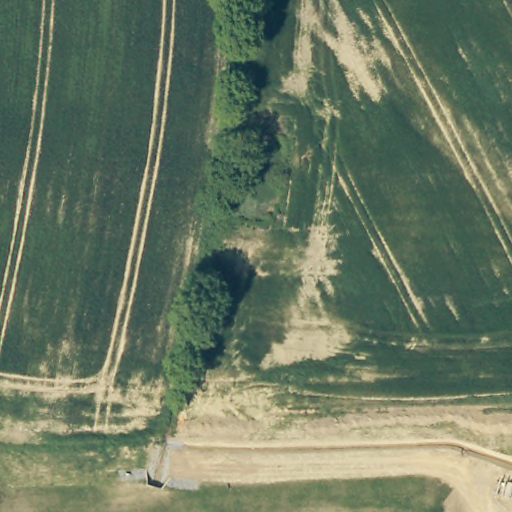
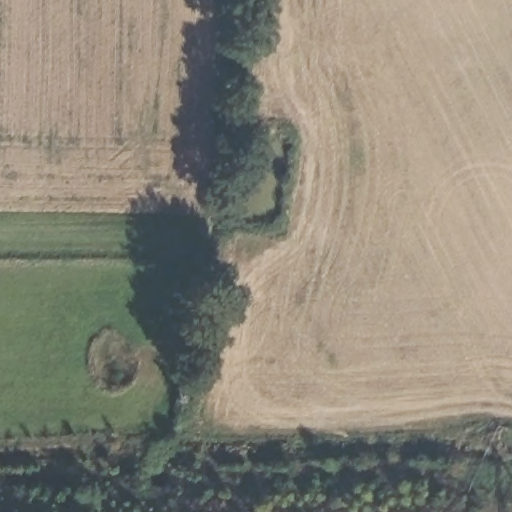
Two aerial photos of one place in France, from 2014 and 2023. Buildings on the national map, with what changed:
[]

